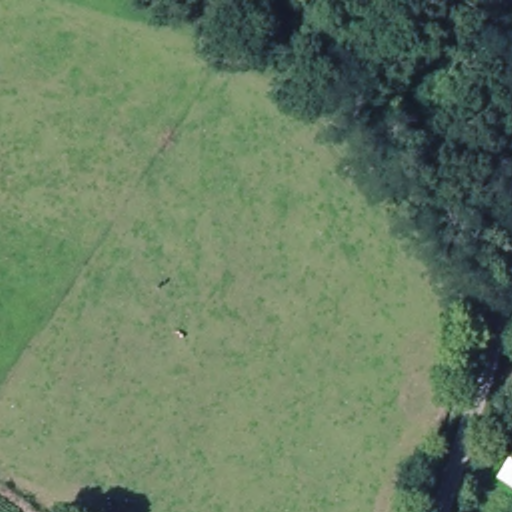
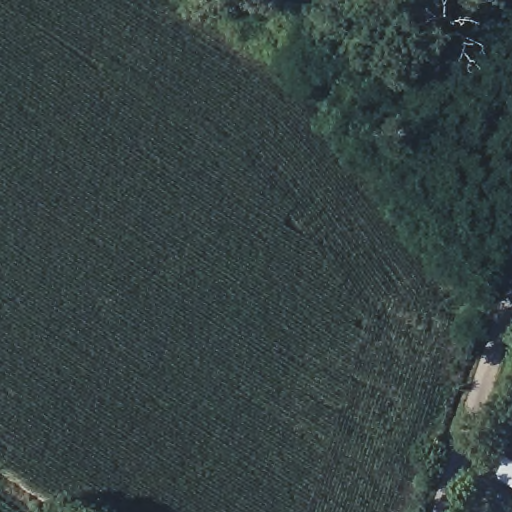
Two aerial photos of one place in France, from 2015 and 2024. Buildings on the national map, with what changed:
unchanged [(512,495),(498,489),(512,453),(512,495)]

